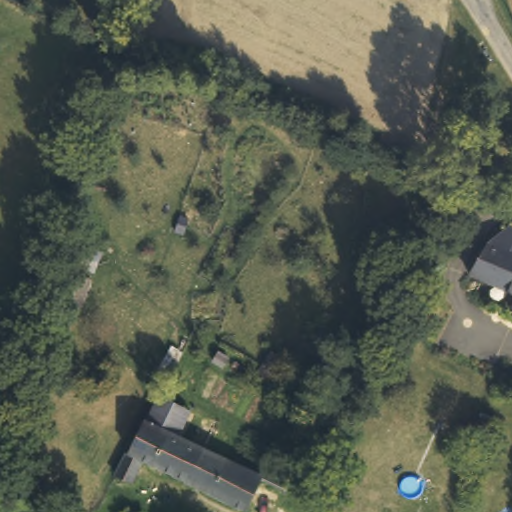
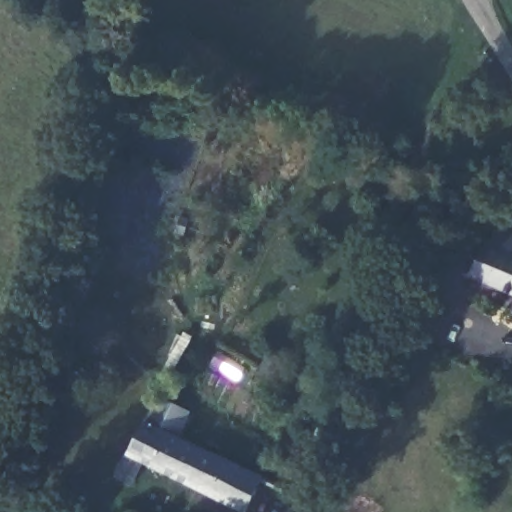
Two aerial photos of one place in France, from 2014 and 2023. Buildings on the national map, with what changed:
unchanged [(512,222),(512,287),(472,270),(489,238),(509,220),(512,222)]
unchanged [(134,485),(111,477),(137,413),(145,417),(151,400),(165,408),(159,423),(228,456),(213,493),(143,464),(134,485)]
unchanged [(267,474),(250,509),(213,493),(228,456),(248,462),(267,474)]

